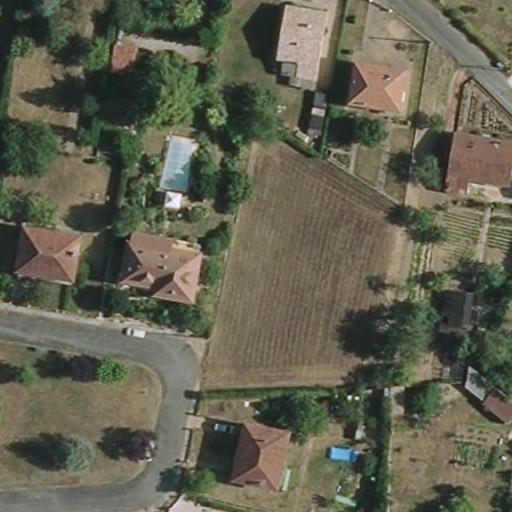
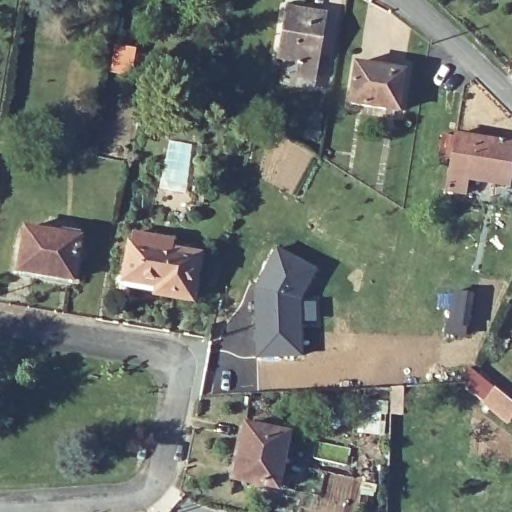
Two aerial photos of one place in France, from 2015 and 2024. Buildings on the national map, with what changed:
unchanged [(283,74),(286,56),(276,55),(285,6),(323,12),(315,77),(283,74)]
unchanged [(139,41),(133,69),(112,67),(117,36),(139,41)]
unchanged [(358,64),(406,70),(401,107),(353,101),(358,64)]
unchanged [(450,193),(459,137),(512,146),(512,181),(511,187),(472,180),(469,196),(450,193)]
unchanged [(24,272),(29,230),(82,236),(77,278),(24,272)]
unchanged [(136,235),(172,240),(170,254),(199,258),(192,302),(159,297),(160,289),(129,285),(136,235)]
new [(276,250),(314,270),(298,301),(301,356),(257,358),(254,291),(276,250)]
unchanged [(472,294),(465,335),(445,331),(448,308),(443,307),(446,290),(472,294)]
new [(471,371),(512,405),(512,418),(508,423),(465,389),(466,367),(471,371)]
unchanged [(249,424),(291,430),(282,485),(241,479),(249,424)]

